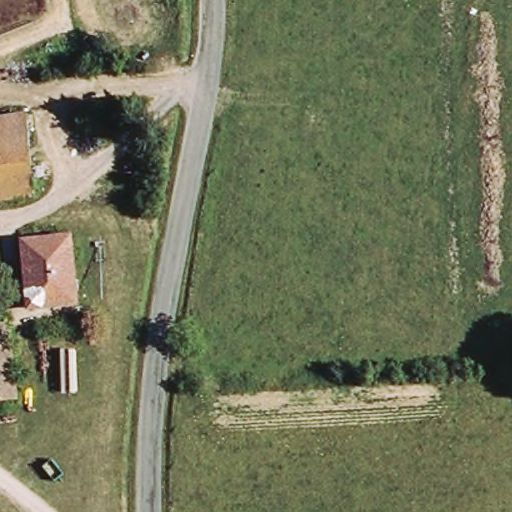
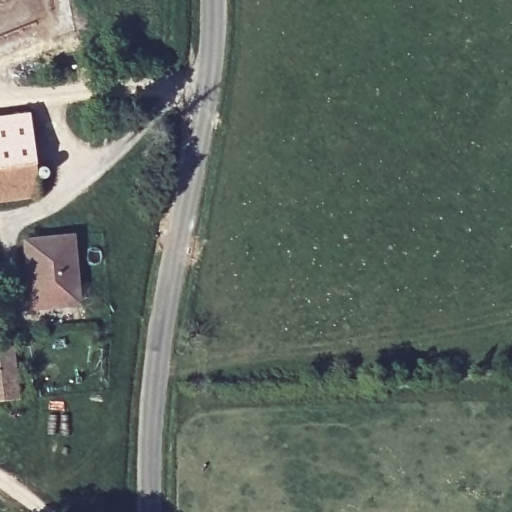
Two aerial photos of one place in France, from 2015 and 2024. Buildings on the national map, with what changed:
unchanged [(25,119),(35,204),(0,207),(0,122),(25,119)]
unchanged [(22,244),(67,240),(76,309),(30,312),(22,244)]
unchanged [(7,321),(18,403),(0,405),(0,322),(7,321)]

